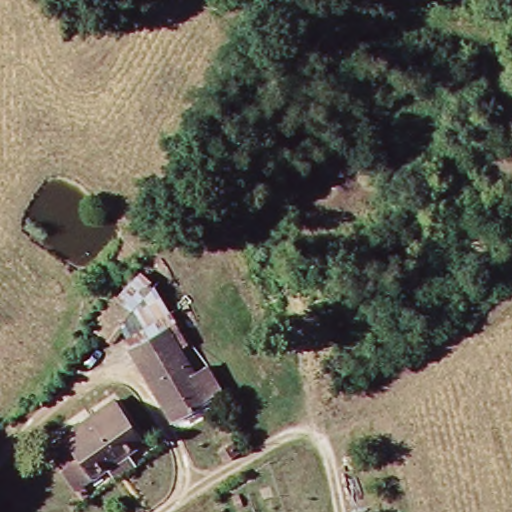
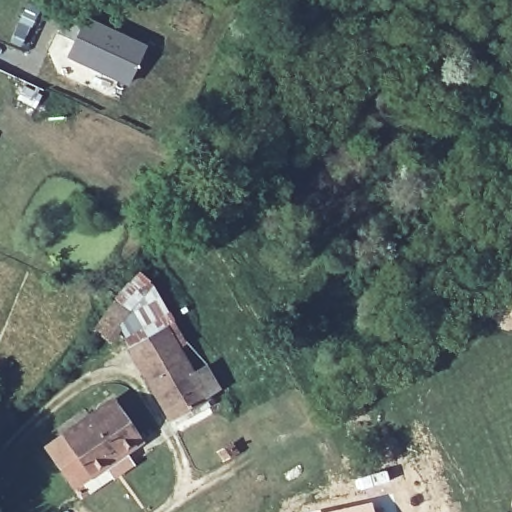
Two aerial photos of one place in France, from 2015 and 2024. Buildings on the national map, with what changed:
new [(82,16),(147,44),(127,86),(65,56),(82,16)]
unchanged [(185,337),(176,343),(208,398),(176,418),(134,346),(175,320),(185,337)]
unchanged [(108,400),(134,436),(68,483),(42,447),(108,400)]

